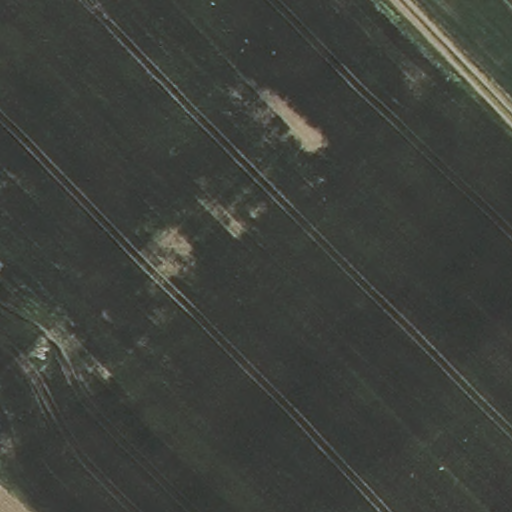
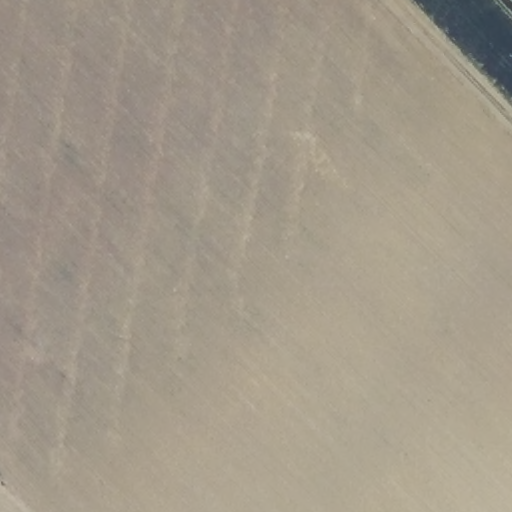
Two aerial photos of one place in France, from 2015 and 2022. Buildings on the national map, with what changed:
[]

